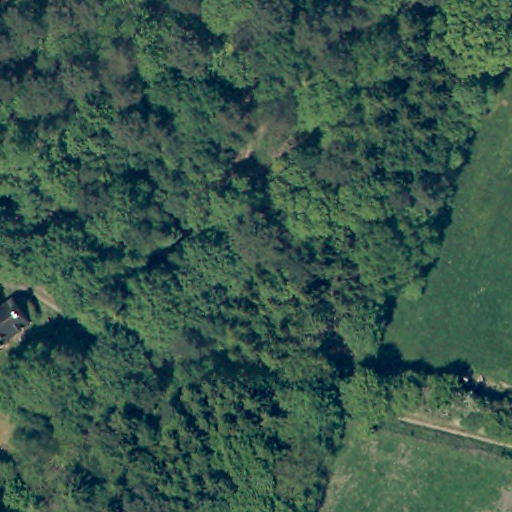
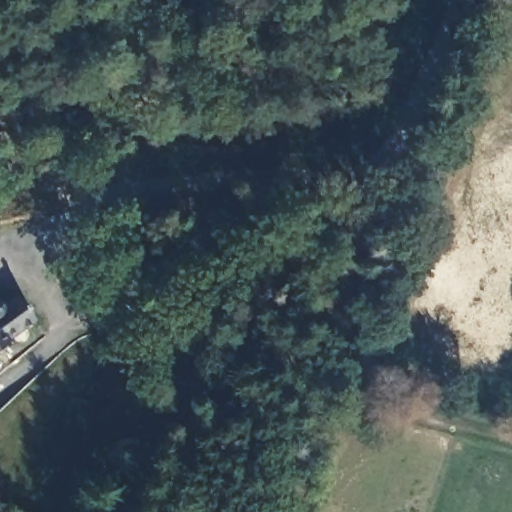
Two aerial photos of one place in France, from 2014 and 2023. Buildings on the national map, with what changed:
unchanged [(0,351),(0,305),(13,296),(34,328),(0,351)]

